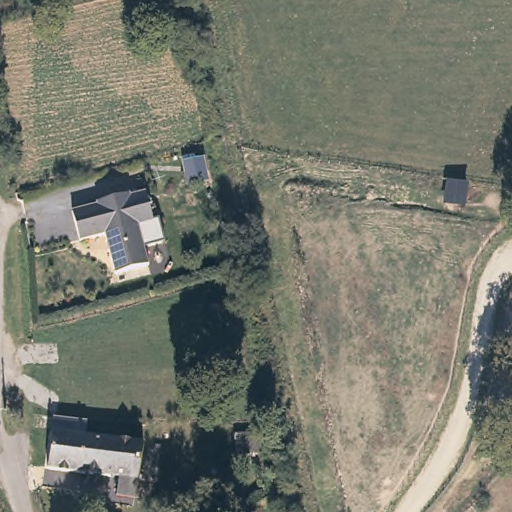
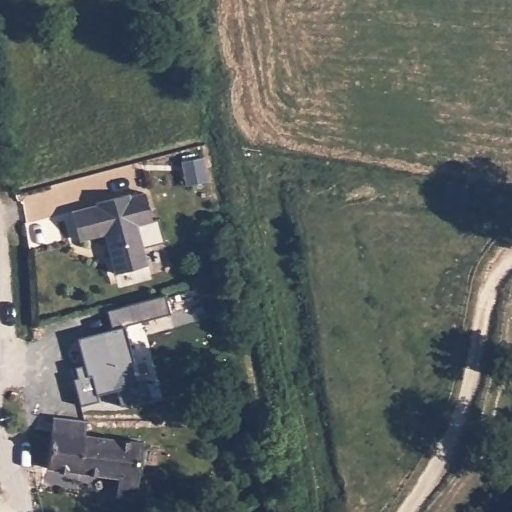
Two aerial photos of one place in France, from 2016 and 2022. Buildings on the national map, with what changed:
unchanged [(126,202),(144,199),(149,224),(134,227),(142,265),(110,274),(102,235),(75,241),(70,215),(97,210),(95,203),(125,196),(126,202)]
new [(115,389),(97,393),(99,400),(80,405),(69,367),(84,362),(76,337),(123,324),(135,362),(131,363),(136,380),(145,377),(151,397),(120,407),(115,389)]
unchanged [(80,475),(47,470),(50,436),(86,440),(80,475)]
unchanged [(142,447),(139,484),(137,501),(116,499),(117,480),(80,475),(86,440),(142,447)]

